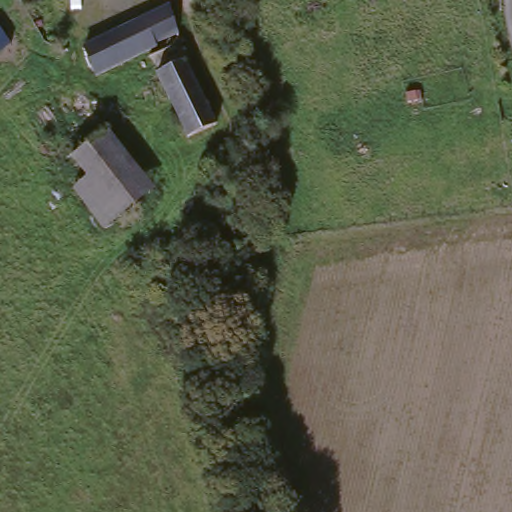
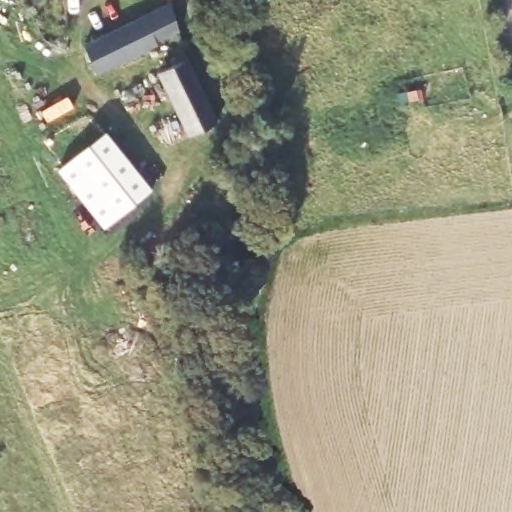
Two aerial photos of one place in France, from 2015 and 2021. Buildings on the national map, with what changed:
unchanged [(181,39),(95,86),(82,58),(169,11),(181,39)]
unchanged [(158,77),(186,64),(213,127),(184,140),(158,77)]
unchanged [(96,137),(146,198),(106,234),(53,174),(96,137)]

